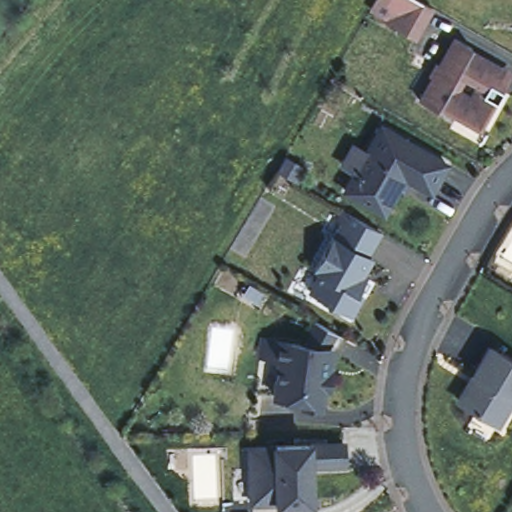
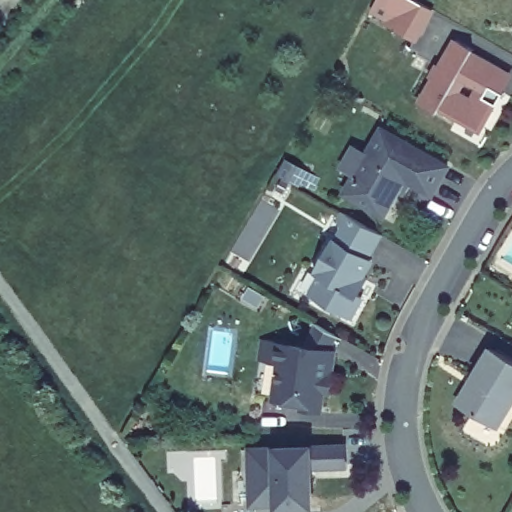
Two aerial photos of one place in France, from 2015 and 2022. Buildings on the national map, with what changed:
unchanged [(391,12),(398,0),(422,0),(432,5),(419,28),(414,36),(387,21),(391,12)]
unchanged [(437,102),(435,107),(419,97),(432,74),(429,72),(437,60),(439,61),(454,35),(472,45),(470,47),(500,64),(499,65),(512,71),(504,86),(480,126),(437,102)]
unchanged [(452,164),(435,192),(409,179),(390,215),(351,193),(362,174),(349,166),(362,142),(375,150),(387,129),(452,164)]
unchanged [(317,273),(335,240),(338,241),(342,232),(340,220),(344,213),(382,234),(369,257),(373,260),(364,277),(369,279),(360,295),(365,297),(353,317),(312,295),(322,276),(317,273)]
unchanged [(317,322),(337,333),(327,351),(327,359),(330,359),(327,390),(322,390),(320,410),(301,407),(301,401),(274,399),(253,397),(259,342),(271,343),(303,347),(317,322)]
unchanged [(512,406),(499,428),(462,406),(461,399),(491,349),(512,361),(512,406)]
unchanged [(261,465),(260,445),(349,441),(348,461),(310,462),(310,478),(315,478),(315,496),(255,498),(255,465),(261,465)]

